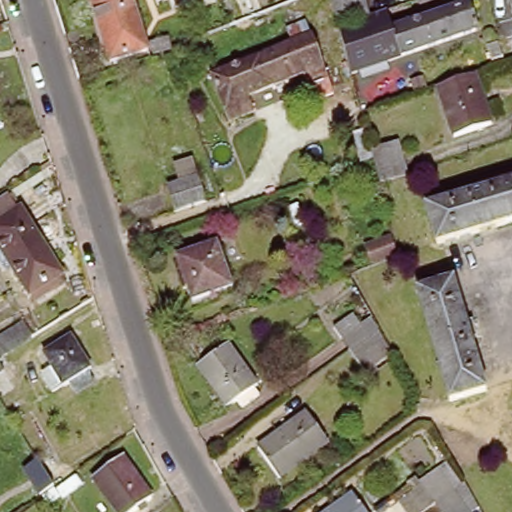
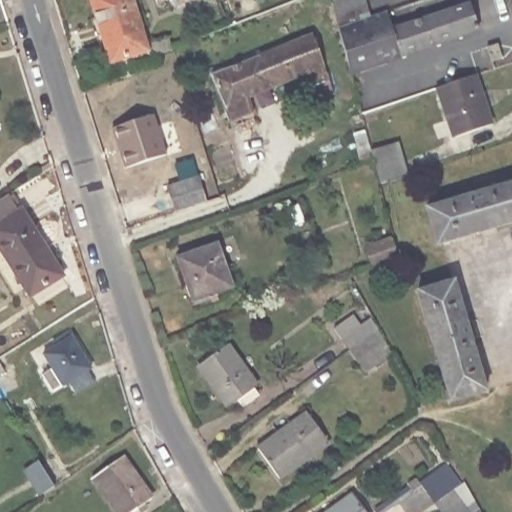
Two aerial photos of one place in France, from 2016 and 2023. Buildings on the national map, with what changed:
unchanged [(142,31),(147,50),(110,61),(92,0),(132,0),(142,31)]
unchanged [(342,25),(332,0),(366,0),(372,15),(342,25)]
unchanged [(387,10),(393,28),(471,3),(480,32),(476,33),(351,74),(344,50),(338,27),(342,25),(372,15),(387,10)]
unchanged [(331,93),(312,100),(304,73),(249,95),(255,111),(230,121),(211,76),(314,33),(321,56),(331,93)]
unchanged [(491,46),(501,43),(505,56),(495,59),(491,46)]
unchanged [(473,74),(491,120),(454,134),(436,87),(473,74)]
new [(125,168),(112,129),(153,115),(166,154),(125,168)]
unchanged [(372,151),(397,142),(409,177),(384,186),(372,151)]
unchanged [(197,203),(175,211),(166,186),(197,175),(207,200),(197,203)]
unchanged [(426,204),(512,179),(512,216),(437,240),(426,204)]
unchanged [(17,274),(0,246),(0,200),(7,195),(9,194),(10,193),(51,258),(62,276),(31,295),(20,277),(17,274)]
unchanged [(366,250),(395,239),(400,257),(400,258),(373,269),(366,250)]
unchanged [(216,243),(232,287),(192,301),(177,257),(216,243)]
unchanged [(417,286),(454,276),(466,316),(472,315),(476,330),(470,332),(487,386),(450,398),(417,286)]
unchanged [(365,375),(349,351),(341,340),(360,327),(367,338),(384,361),(365,375)]
unchanged [(71,389),(64,378),(59,380),(39,351),(65,333),(85,363),(82,366),(90,377),(71,389)]
unchanged [(256,383),(228,403),(198,362),(226,341),(256,383)]
demolished [(0,396),(0,366),(14,387),(0,396)]
unchanged [(305,410),(327,439),(278,474),(257,445),(305,410)]
unchanged [(131,422),(128,424),(130,428),(134,427),(135,431),(133,433),(121,436),(117,423),(130,419),(131,422)]
unchanged [(119,456),(147,496),(125,512),(114,512),(90,478),(119,456)]
unchanged [(45,467),(54,460),(67,478),(58,485),(45,467)]
unchanged [(53,486),(40,494),(24,469),(37,461),(53,486)]
unchanged [(478,512),(438,512),(435,507),(420,485),(439,472),(455,494),(466,486),(479,511),(478,512)]
unchanged [(367,512),(326,512),(353,492),(367,512)]

